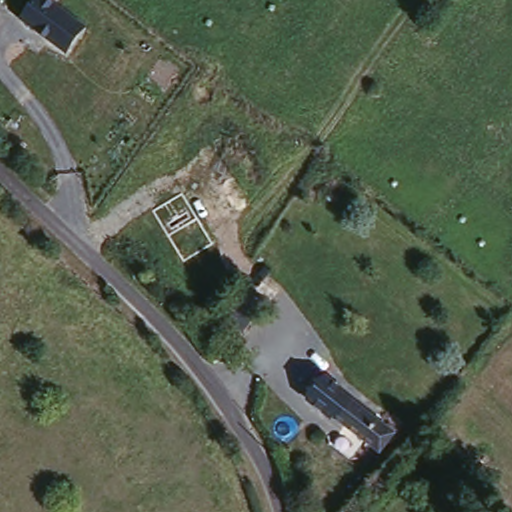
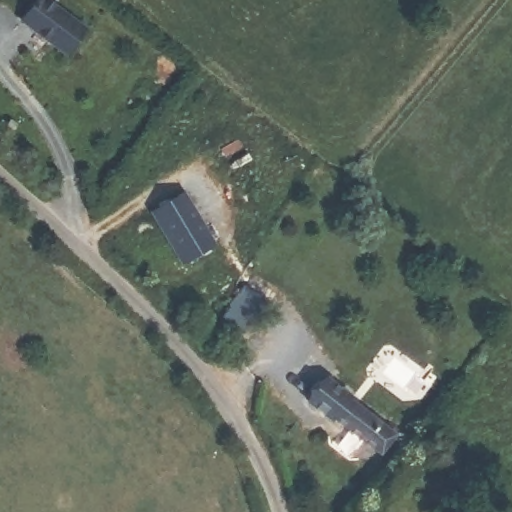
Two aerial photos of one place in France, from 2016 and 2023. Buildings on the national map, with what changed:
unchanged [(88,29),(67,56),(19,21),(34,0),(52,0),(88,29)]
new [(182,190),(217,245),(182,267),(150,214),(182,190)]
unchanged [(397,436),(383,455),(313,401),(327,382),(397,436)]

